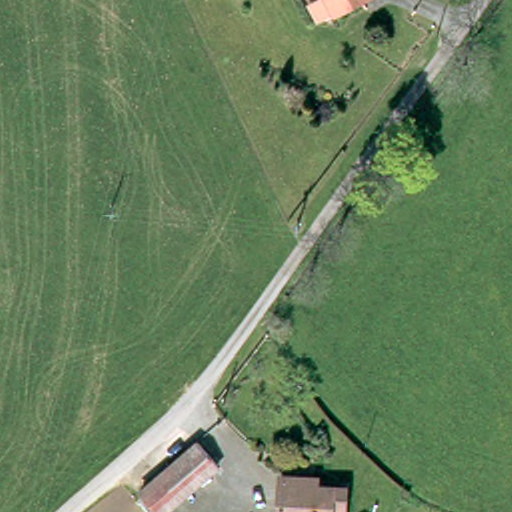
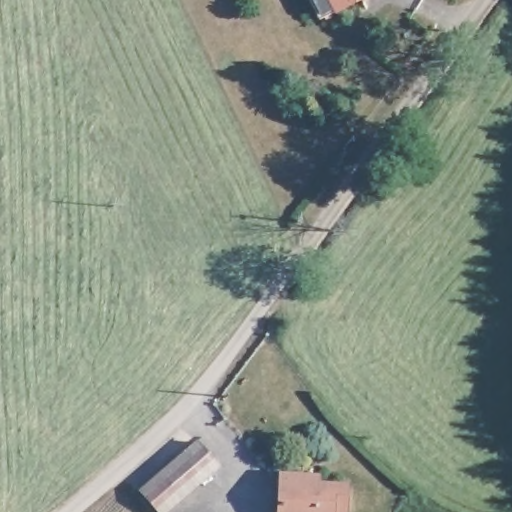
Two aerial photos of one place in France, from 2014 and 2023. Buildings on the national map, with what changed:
unchanged [(315,15),(308,0),(350,0),(315,15)]
unchanged [(140,488),(192,441),(212,463),(170,502),(158,510),(140,488)]
unchanged [(300,475),(300,486),(342,488),(342,512),(277,512),(279,473),(300,475)]

